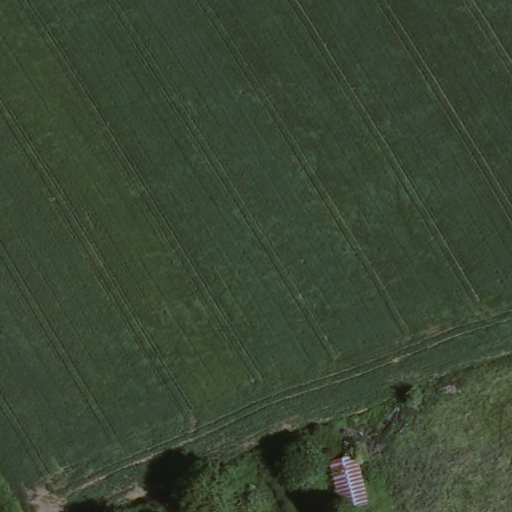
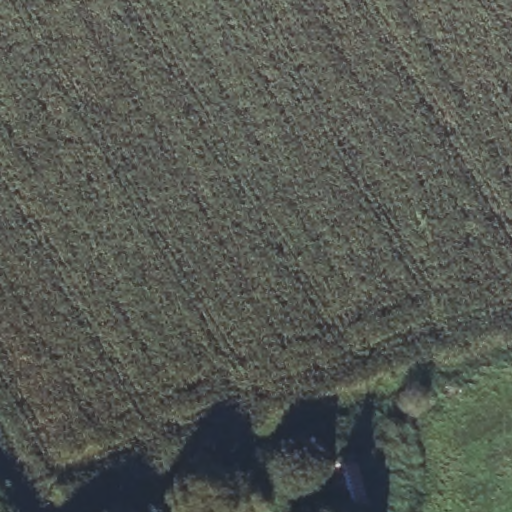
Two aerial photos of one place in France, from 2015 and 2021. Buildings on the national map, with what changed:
unchanged [(363,456),(374,504),(344,512),(336,512),(325,467),(363,456)]

